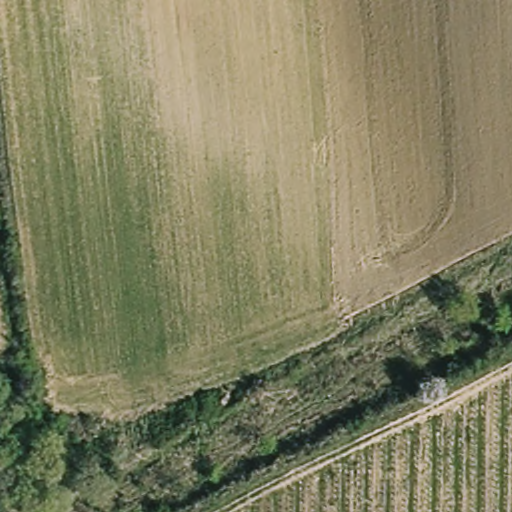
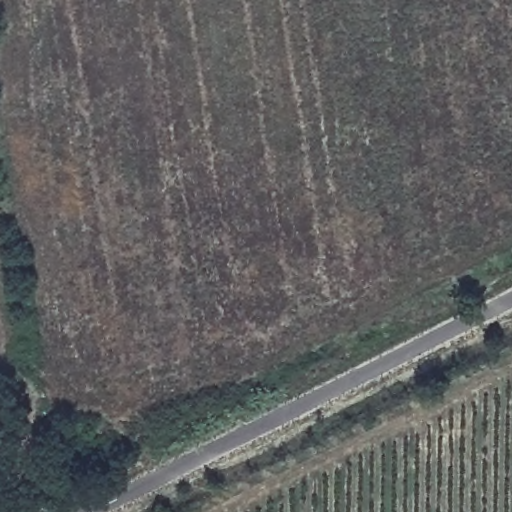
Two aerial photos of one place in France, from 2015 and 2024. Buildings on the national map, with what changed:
[]

